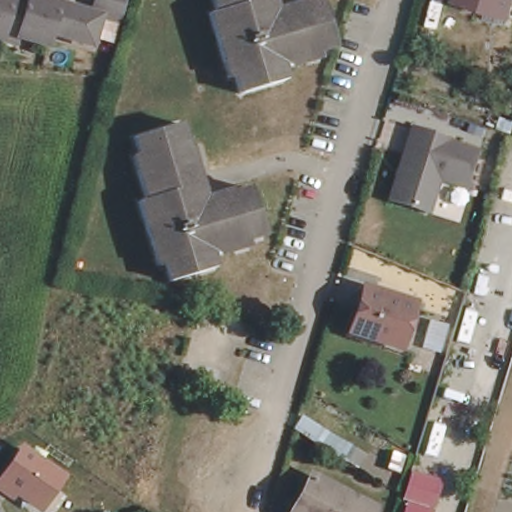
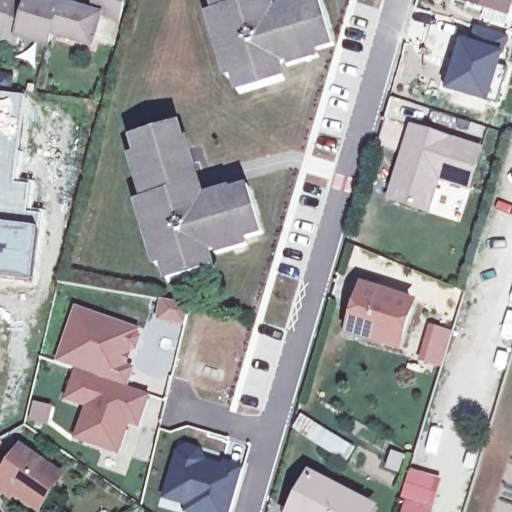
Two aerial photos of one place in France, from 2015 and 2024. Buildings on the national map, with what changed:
unchanged [(29,4),(30,0),(42,0),(92,15),(97,0),(126,0),(120,24),(101,19),(91,49),(51,37),(47,50),(26,43),(17,41),(15,48),(0,43),(0,0),(18,0),(29,4)]
unchanged [(220,10),(217,0),(273,0),(277,12),(307,3),(308,5),(324,0),(326,0),(338,45),(320,50),(322,58),(307,62),(306,60),(290,65),(288,61),(281,62),(286,81),(242,94),(237,76),(230,78),(226,64),(228,63),(214,12),(220,10)]
unchanged [(512,7),(510,16),(459,0),(512,0),(512,7)]
new [(461,37),(468,39),(473,23),(507,35),(486,103),(443,88),(461,37)]
new [(13,72),(10,93),(25,95),(16,181),(33,183),(30,210),(44,212),(35,285),(0,280),(0,69),(13,72)]
unchanged [(475,182),(445,173),(434,205),(395,193),(403,170),(405,161),(418,121),(488,143),(475,182)]
unchanged [(150,199),(141,168),(138,169),(134,155),(143,152),(138,135),(182,122),(187,139),(191,138),(200,169),(198,169),(206,197),(237,188),(237,191),(255,186),(268,231),(251,236),(254,244),(238,249),(238,247),(221,251),(220,247),(213,249),(217,267),(173,279),(168,263),(158,266),(154,251),(155,251),(141,201),(150,199)]
unchanged [(416,297),(403,341),(370,331),(372,326),(355,321),(366,282),(416,297)]
new [(155,319),(159,300),(185,307),(180,326),(155,319)]
new [(140,333),(142,338),(138,351),(132,353),(127,366),(135,369),(128,387),(150,396),(140,429),(130,426),(120,456),(73,440),(85,407),(65,400),(75,370),(55,362),(75,306),(141,329),(140,333)]
unchanged [(430,320),(447,325),(441,344),(425,339),(430,320)]
new [(300,413),(355,447),(345,464),(290,428),(300,413)]
unchanged [(68,475),(42,512),(15,496),(12,501),(0,493),(0,476),(21,443),(68,475)]
new [(195,445),(206,455),(243,466),(229,512),(183,512),(180,511),(181,505),(158,498),(175,446),(195,445)]
unchanged [(403,512),(405,501),(401,499),(410,469),(442,480),(433,512),(403,512)]
unchanged [(375,500),(370,512),(296,512),(296,511),(310,476),(375,500)]

